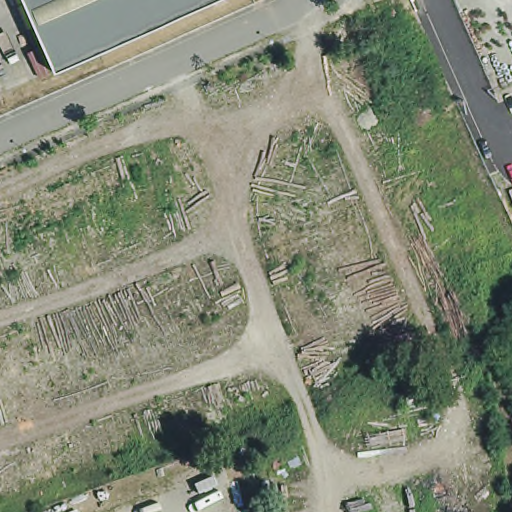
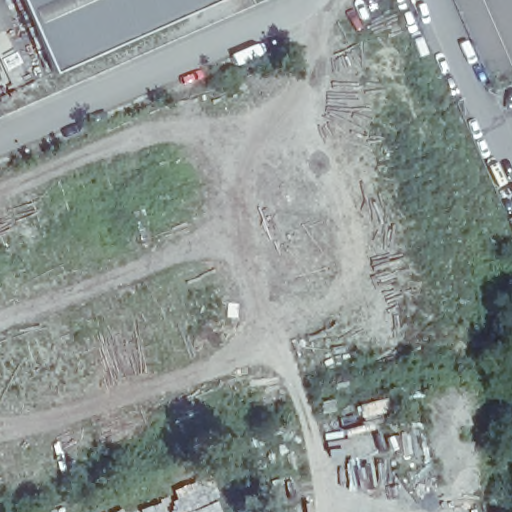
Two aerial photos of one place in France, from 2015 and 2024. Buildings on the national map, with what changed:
unchanged [(60,75),(24,0),(213,0),(182,15),(60,75)]

